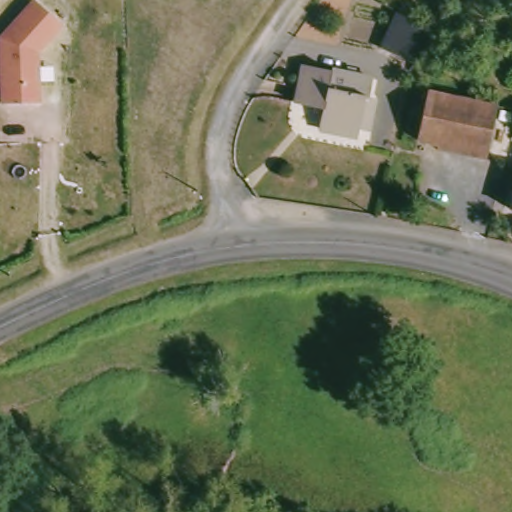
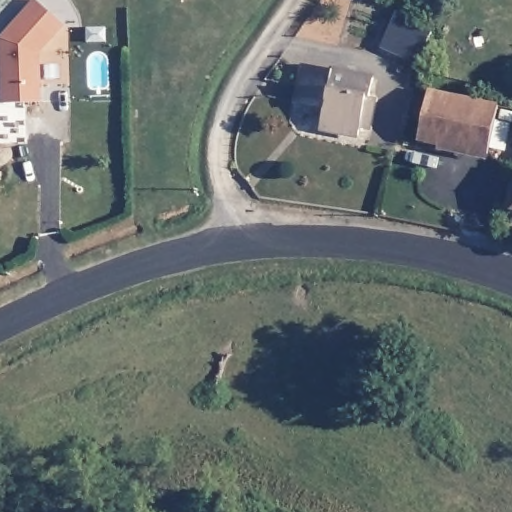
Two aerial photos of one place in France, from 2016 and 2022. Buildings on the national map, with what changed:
unchanged [(30,0),(35,0),(62,25),(38,52),(40,100),(0,102),(0,34),(30,0)]
unchanged [(429,29),(410,60),(372,39),(392,5),(429,29)]
unchanged [(314,104),(288,99),(296,60),(367,75),(359,112),(352,111),(346,132),(310,124),(314,104)]
unchanged [(424,88),(495,104),(482,155),(412,140),(424,88)]
unchanged [(507,205),(512,173),(512,206),(507,205)]

